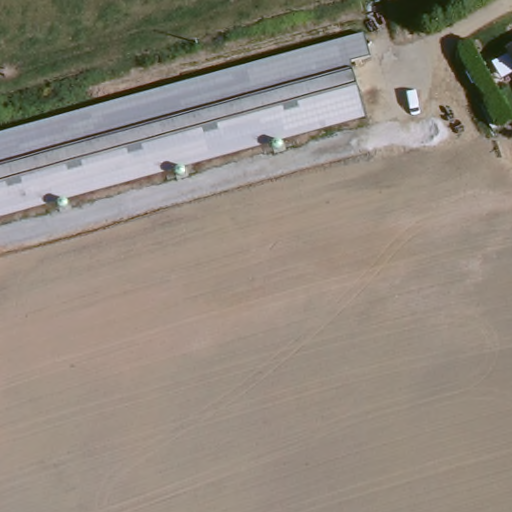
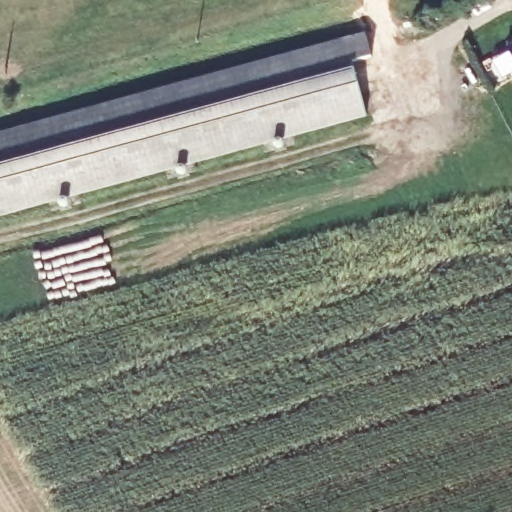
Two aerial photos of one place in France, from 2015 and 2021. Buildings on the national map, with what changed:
unchanged [(355,37),(375,106),(0,215),(0,140),(355,37)]

